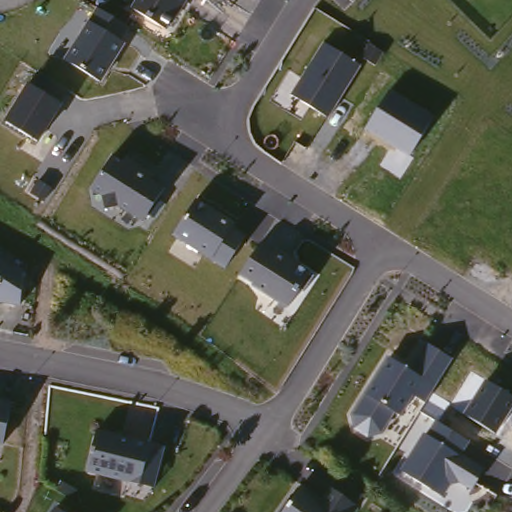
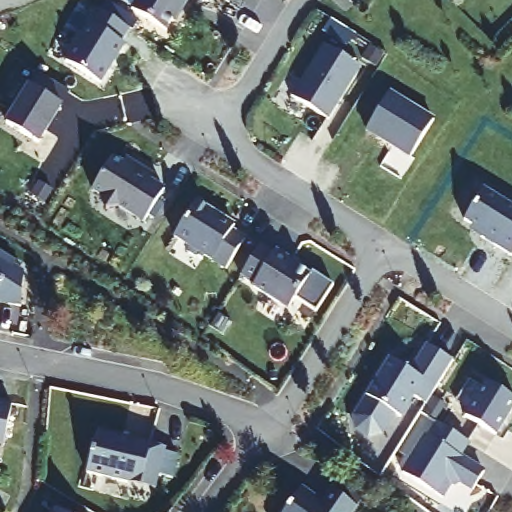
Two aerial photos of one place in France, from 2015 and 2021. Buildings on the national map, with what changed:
unchanged [(167,30),(131,8),(137,0),(186,0),(167,30)]
unchanged [(100,80),(65,59),(95,9),(131,31),(100,80)]
unchanged [(326,119),(291,96),(323,44),(360,67),(326,119)]
unchanged [(39,142),(6,121),(30,82),(37,72),(68,92),(62,103),(39,142)]
unchanged [(410,157),(365,130),(390,91),(432,118),(410,157)]
unchanged [(164,197),(169,201),(155,219),(149,214),(144,220),(93,190),(115,153),(170,188),(164,197)]
new [(512,205),(512,254),(482,235),(485,231),(465,218),(484,186),(512,205)]
unchanged [(225,269),(174,236),(195,201),(246,238),(225,269)]
unchanged [(288,308),(241,279),(263,241),(312,274),(288,308)]
unchanged [(6,268),(16,275),(14,306),(0,305),(0,260),(8,265),(6,268)]
unchanged [(425,403),(415,395),(401,417),(395,412),(382,434),(366,437),(351,428),(348,413),(365,390),(387,355),(406,367),(420,342),(451,360),(425,403)]
unchanged [(496,433),(465,413),(485,380),(512,397),(512,411),(496,433)]
unchanged [(4,448),(0,448),(0,405),(12,407),(4,448)]
unchanged [(472,490),(459,483),(450,484),(440,496),(400,471),(422,434),(425,436),(433,421),(469,443),(463,453),(487,466),(472,490)]
unchanged [(152,490),(125,484),(84,475),(94,433),(147,446),(162,449),(152,490)]
unchanged [(289,502),(301,483),(317,492),(315,494),(325,500),(335,485),(357,500),(350,512),(280,512),(287,501),(289,502)]
unchanged [(47,512),(50,507),(57,512),(47,512)]

